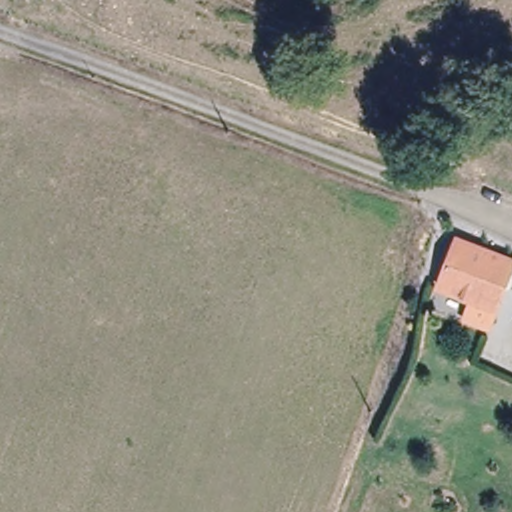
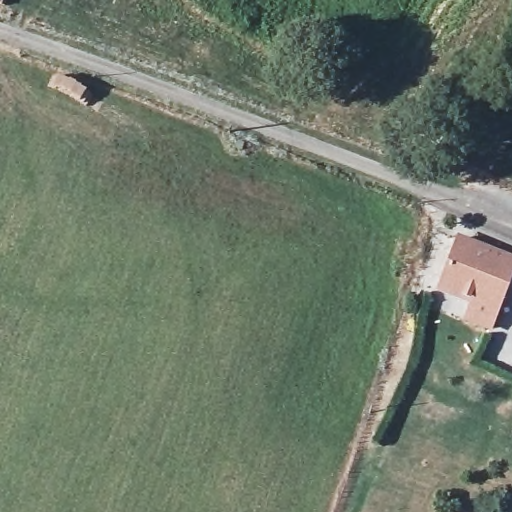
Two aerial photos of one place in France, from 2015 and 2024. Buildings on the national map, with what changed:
unchanged [(459,234),(512,256),(512,279),(495,320),(472,310),(479,289),(443,275),(455,245),(459,234)]

